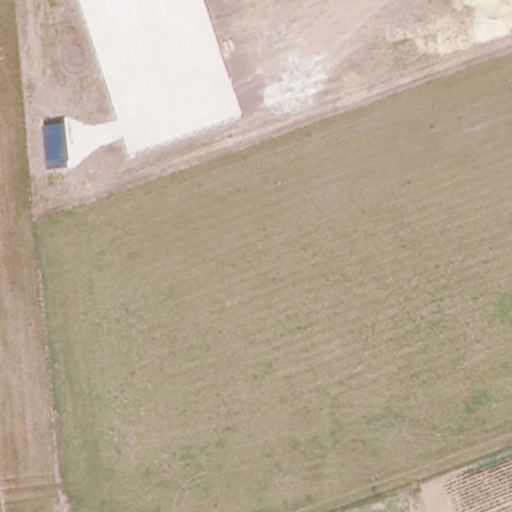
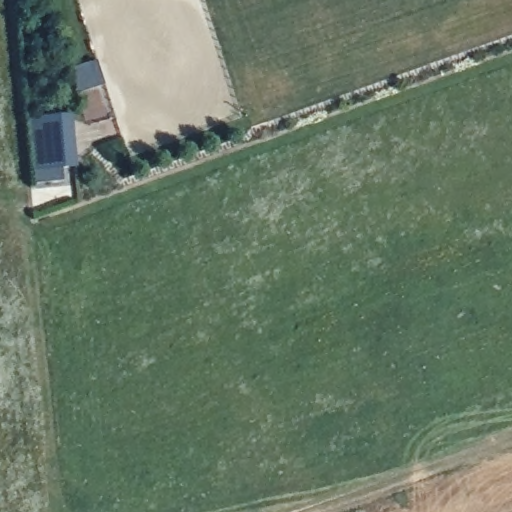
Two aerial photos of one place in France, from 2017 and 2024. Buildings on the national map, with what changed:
new [(77,168),(62,170),(63,182),(35,184),(29,119),(72,115),(77,168)]

